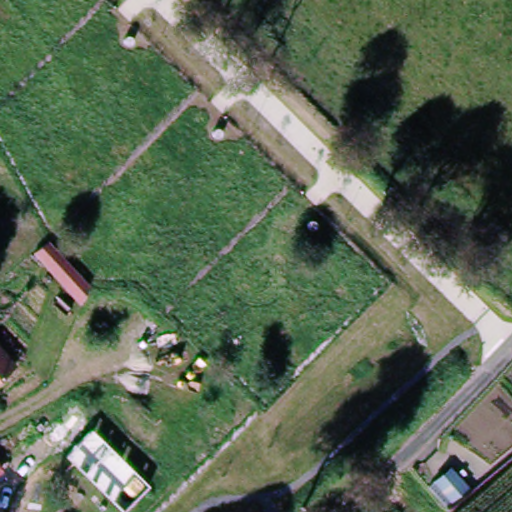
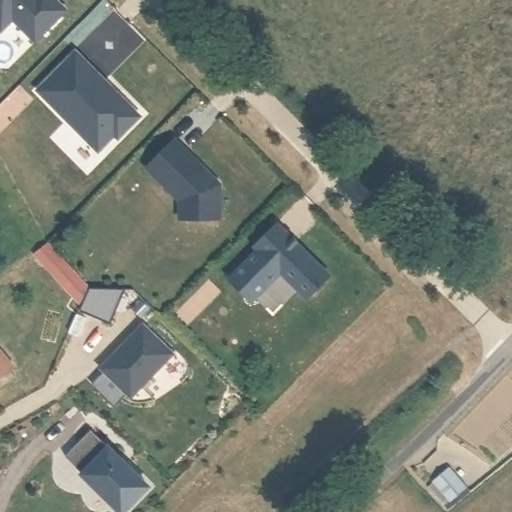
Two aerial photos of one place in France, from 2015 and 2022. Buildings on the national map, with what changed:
new [(35,43),(15,20),(2,32),(0,29),(0,0),(57,0),(68,10),(35,43)]
new [(107,84),(104,88),(140,125),(119,144),(116,142),(100,158),(38,95),(76,55),(107,84)]
demolished [(221,63),(237,84),(213,105),(195,85),(221,63)]
new [(217,181),(215,184),(219,194),(222,194),(222,222),(180,224),(180,203),(145,172),(175,141),(217,181)]
new [(333,275),(307,303),(280,278),(252,307),(224,282),(255,250),(251,246),(276,220),(333,275)]
unchanged [(29,253),(45,243),(87,286),(79,304),(29,253)]
demolished [(154,290),(189,303),(185,314),(202,321),(194,344),(134,320),(106,309),(115,288),(142,298),(150,300),(154,290)]
new [(129,351),(149,331),(179,360),(136,404),(106,374),(124,356),(129,351)]
unchanged [(0,373),(0,345),(14,362),(0,373)]
new [(97,438),(154,496),(138,512),(118,512),(72,465),(97,438)]
unchanged [(423,481),(445,463),(464,485),(442,504),(423,481)]

